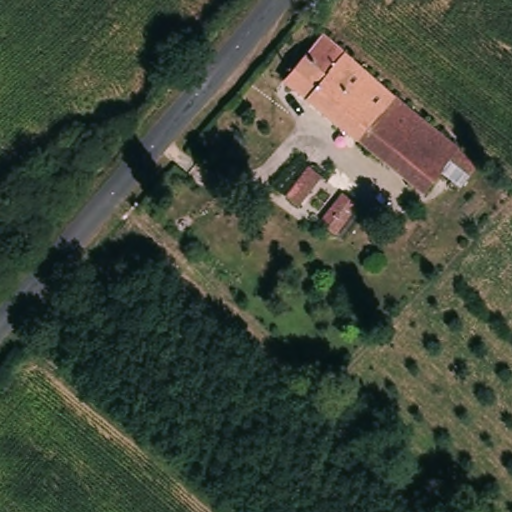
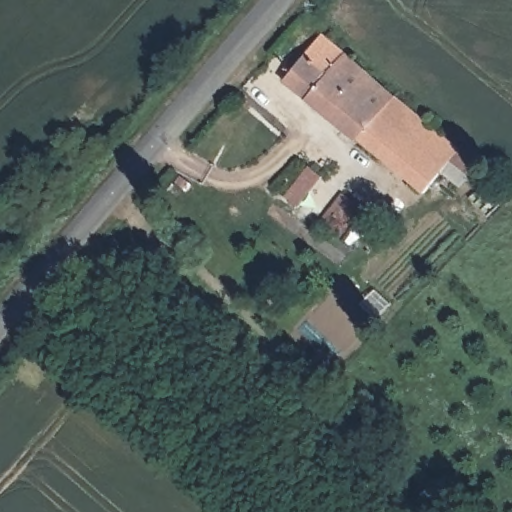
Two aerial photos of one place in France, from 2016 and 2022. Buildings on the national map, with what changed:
unchanged [(327,35),(377,76),(340,125),(287,84),(327,35)]
unchanged [(377,76),(482,160),(470,176),(448,158),(438,169),(448,177),(437,190),(428,183),(421,191),(380,158),(340,125),(377,76)]
unchanged [(337,189),(315,217),(289,196),(277,186),(298,159),(337,189)]
unchanged [(363,210),(342,237),(327,225),(348,196),(363,210)]

